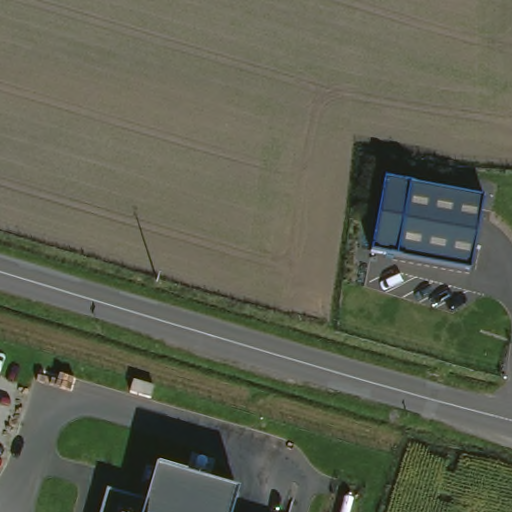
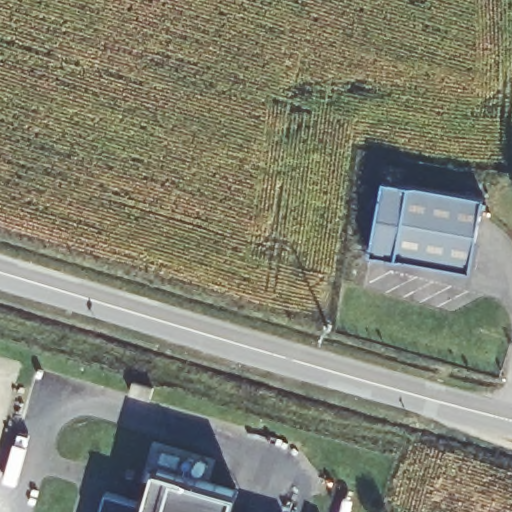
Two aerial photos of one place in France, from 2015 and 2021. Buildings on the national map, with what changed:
unchanged [(472,270),(398,258),(366,253),(380,178),(410,183),(482,197),(472,270)]
unchanged [(134,379),(154,385),(151,397),(130,391),(134,379)]
unchanged [(103,488),(143,499),(152,468),(235,492),(230,512),(97,512),(103,488)]

